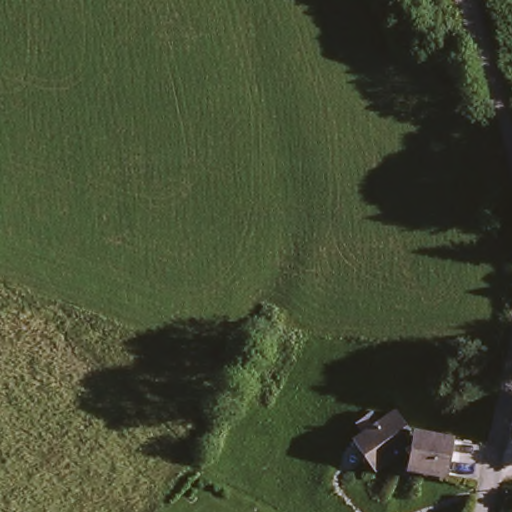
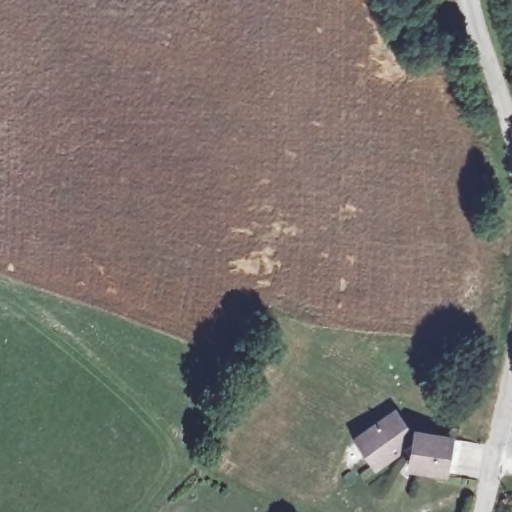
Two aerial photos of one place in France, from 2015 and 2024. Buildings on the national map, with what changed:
unchanged [(447,480),(424,475),(405,457),(377,474),(360,447),(398,419),(410,432),(410,439),(410,440),(419,445),(422,435),(455,445),(447,480)]

